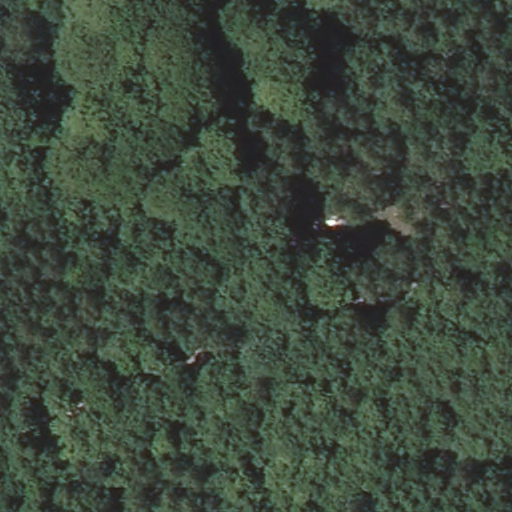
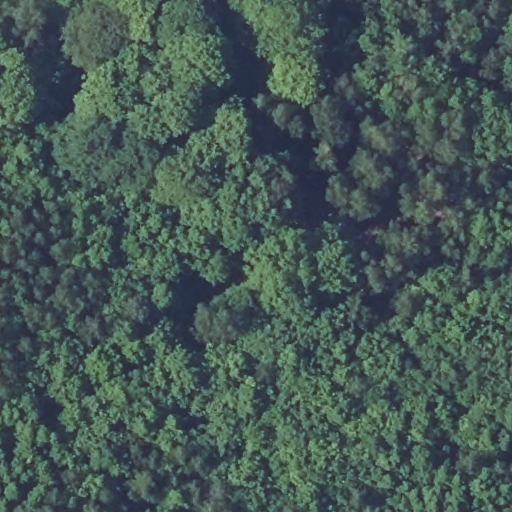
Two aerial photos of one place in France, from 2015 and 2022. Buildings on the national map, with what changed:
unchanged [(260,244),(300,224),(330,213),(334,207),(345,204),(356,208),(361,219),(357,232),(346,237),(339,234),(311,248),(315,255),(275,273),(260,244)]

